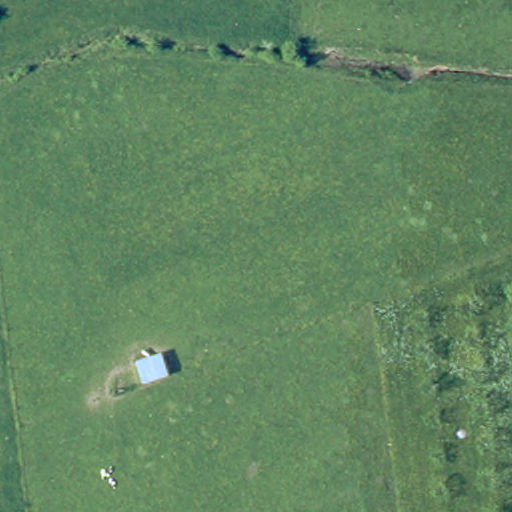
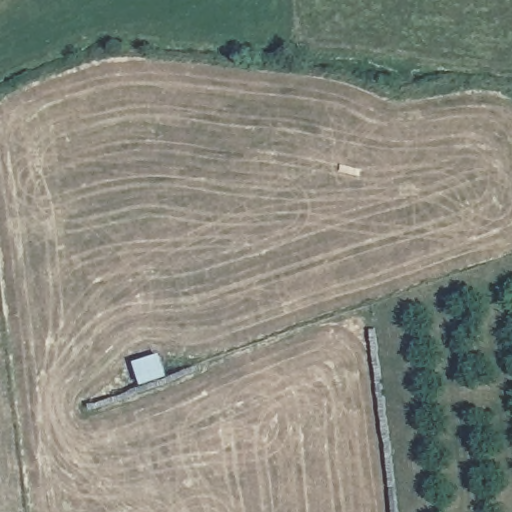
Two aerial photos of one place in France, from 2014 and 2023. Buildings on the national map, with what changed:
unchanged [(132,350),(164,345),(171,379),(145,378),(132,350)]

